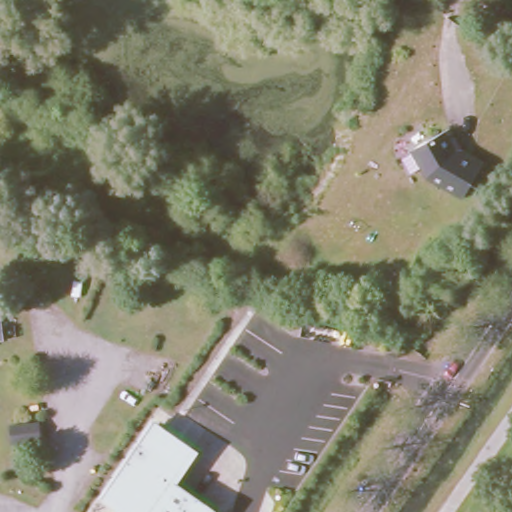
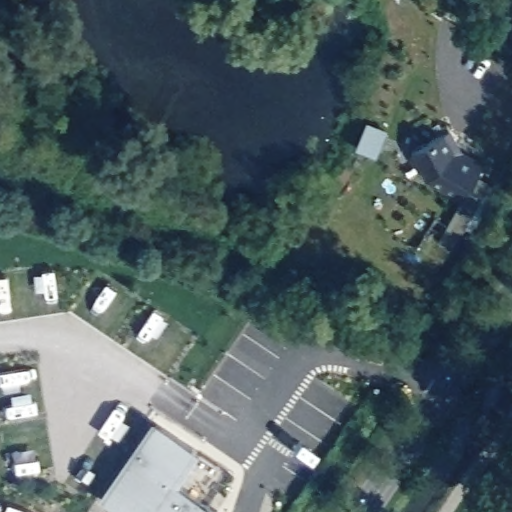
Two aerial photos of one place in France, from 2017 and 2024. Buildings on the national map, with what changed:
unchanged [(462,150),(484,162),(461,199),(425,178),(411,151),(449,128),(462,150)]
unchanged [(181,477),(223,505),(218,512),(155,512),(159,506),(118,477),(151,429),(159,417),(163,420),(171,425),(203,446),(181,477)]
unchanged [(159,506),(155,512),(132,512),(107,494),(118,477),(159,506)]

